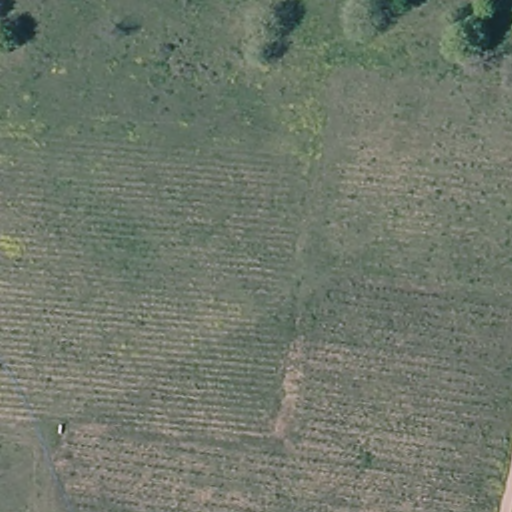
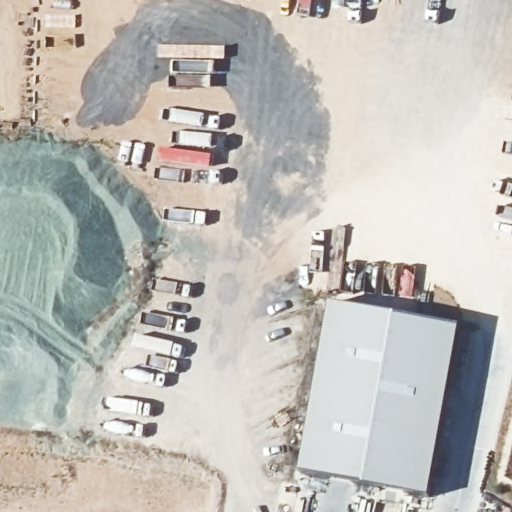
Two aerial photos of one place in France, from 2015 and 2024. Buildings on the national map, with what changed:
new [(461,325),(432,496),(301,475),(331,303),(461,325)]

